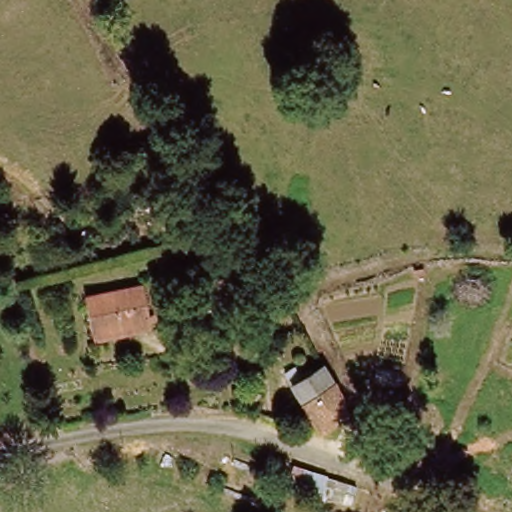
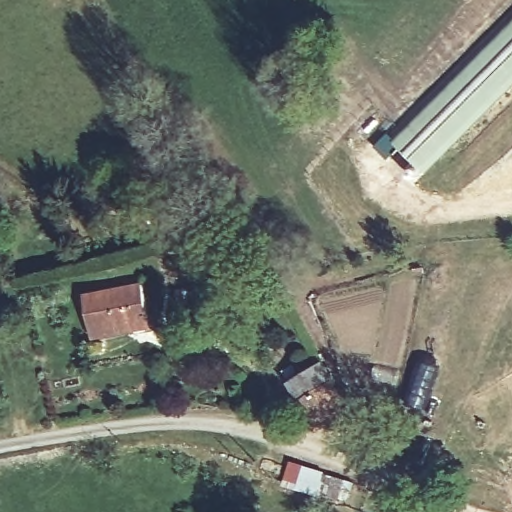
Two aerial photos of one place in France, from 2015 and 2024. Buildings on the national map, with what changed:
new [(392,140),(464,65),(512,18),(512,84),(498,99),(423,173),(399,148),(387,160),(374,145),(386,133),(392,140)]
unchanged [(146,328),(91,333),(87,303),(144,296),(145,316),(146,328)]
unchanged [(341,397),(343,412),(324,425),(296,384),(323,366),(333,383),(341,397)]
new [(320,468),(350,483),(339,505),(286,479),(296,460),(319,471),(320,468)]

